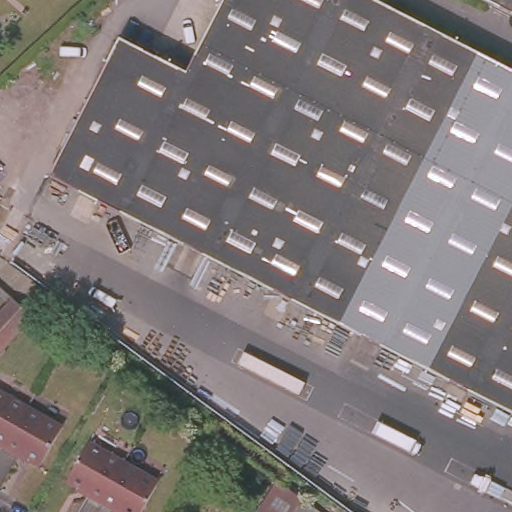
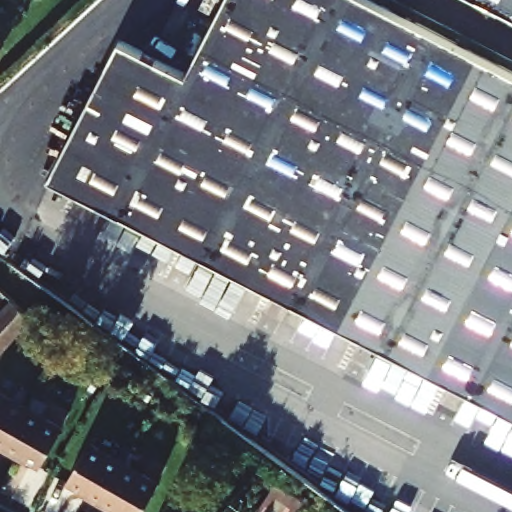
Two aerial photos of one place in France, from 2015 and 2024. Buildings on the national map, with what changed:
unchanged [(512,78),(512,419),(307,315),(46,181),(117,43),(182,77),(222,0),(360,0),(512,78)]
unchanged [(469,0),(512,0),(512,22),(469,0)]
unchanged [(0,342),(0,298),(2,297),(23,315),(0,342)]
unchanged [(61,420),(39,459),(19,448),(17,451),(2,443),(0,441),(0,384),(27,400),(61,420)]
unchanged [(157,476),(136,512),(131,512),(115,503),(113,507),(99,499),(85,490),(87,486),(66,475),(89,436),(123,456),(157,476)]
unchanged [(256,512),(250,508),(268,480),(318,512),(256,512)]
unchanged [(166,512),(167,511),(169,512),(166,512)]

